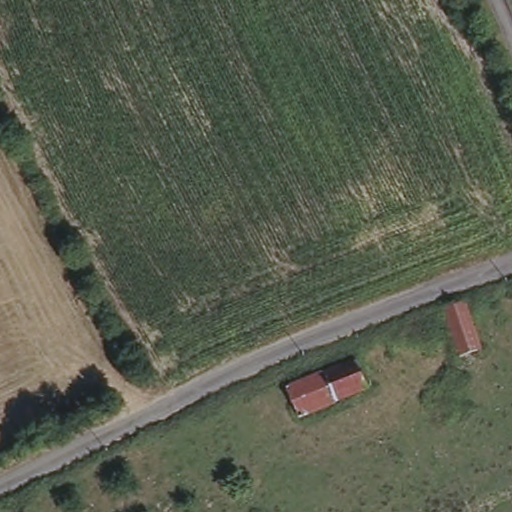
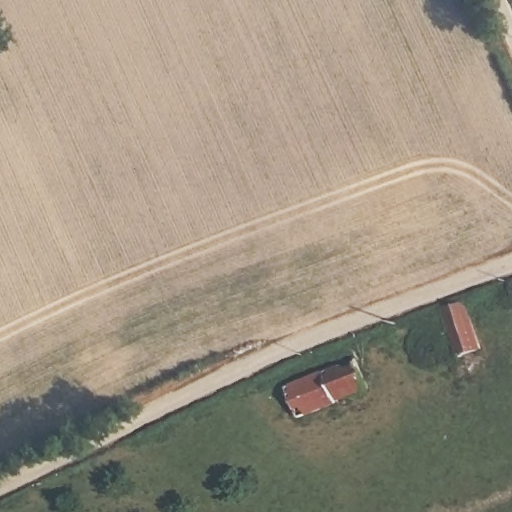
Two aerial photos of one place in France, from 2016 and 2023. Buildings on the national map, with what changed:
unchanged [(462,304),(476,348),(456,355),(442,310),(462,304)]
unchanged [(348,360),(358,389),(294,413),(284,383),(348,360)]

